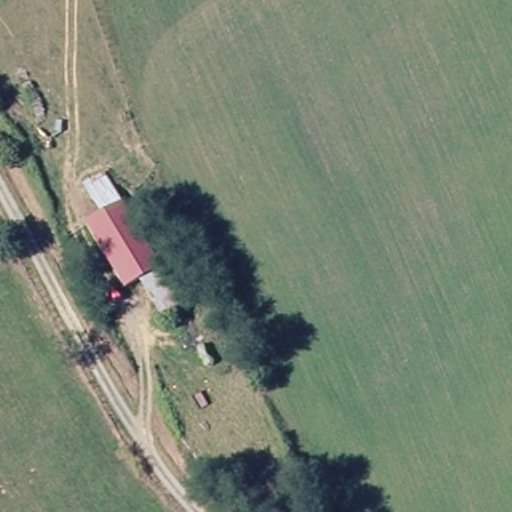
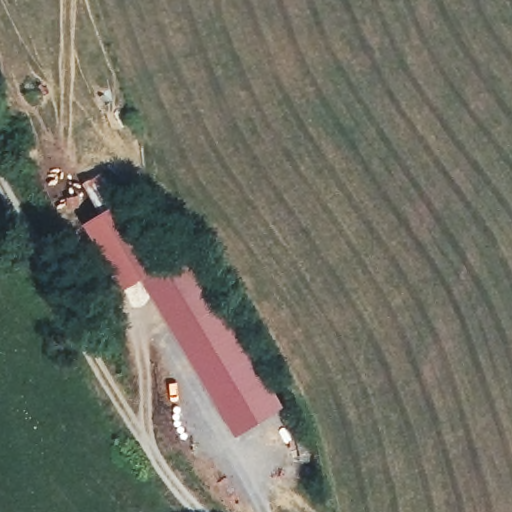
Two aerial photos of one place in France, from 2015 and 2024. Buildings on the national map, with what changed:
unchanged [(108,166),(126,197),(101,211),(83,180),(108,166)]
unchanged [(88,218),(101,211),(126,197),(130,204),(160,256),(163,262),(140,276),(129,283),(88,218)]
new [(286,406),(237,436),(141,279),(191,250),(286,406)]
demolished [(163,262),(185,301),(162,314),(140,276),(163,262)]

